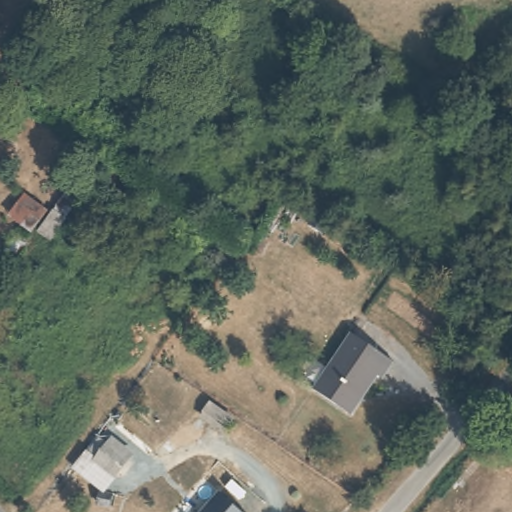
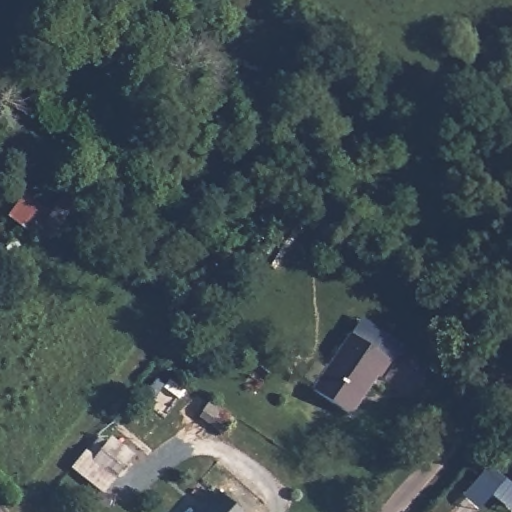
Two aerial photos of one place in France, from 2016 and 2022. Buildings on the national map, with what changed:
unchanged [(49,212),(37,229),(8,211),(22,193),(49,212)]
unchanged [(0,250),(3,244),(16,251),(6,262),(0,257),(0,250)]
unchanged [(312,388),(349,332),(391,361),(381,378),(375,376),(349,414),(312,388)]
unchanged [(235,418),(223,436),(196,419),(208,400),(235,418)]
unchanged [(94,456),(107,441),(125,455),(114,470),(94,456)]
new [(491,495),(479,510),(463,496),(487,465),(512,485),(512,511),(491,495)]
unchanged [(241,512),(199,512),(217,492),(241,512)]

